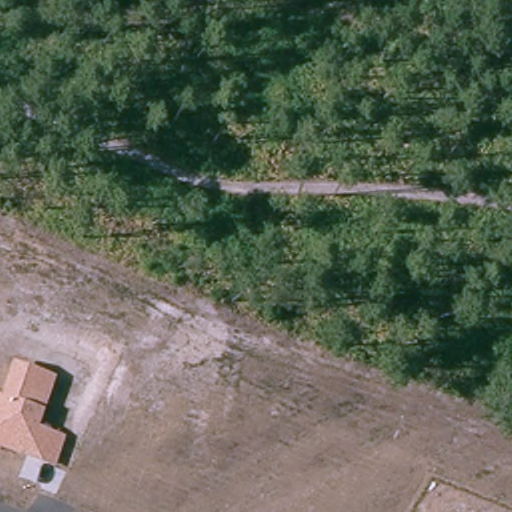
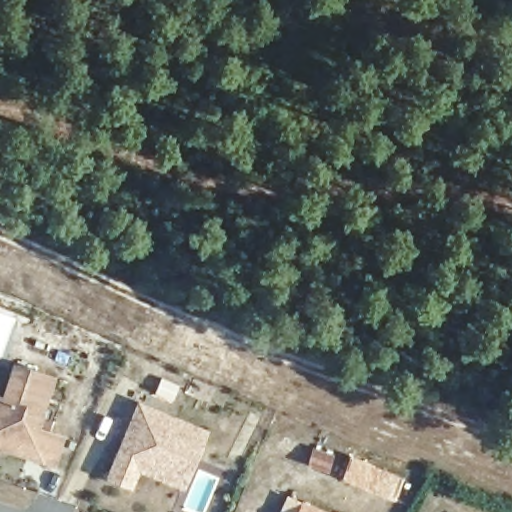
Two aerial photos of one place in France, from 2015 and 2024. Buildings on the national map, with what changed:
unchanged [(0,452),(0,396),(1,396),(13,361),(56,377),(41,427),(66,436),(56,470),(0,452)]
new [(210,430),(185,491),(140,471),(132,490),(104,480),(139,401),(210,430)]
new [(396,500),(341,478),(350,457),(405,478),(396,500)]
new [(279,512),(287,494),(325,512),(279,512)]

